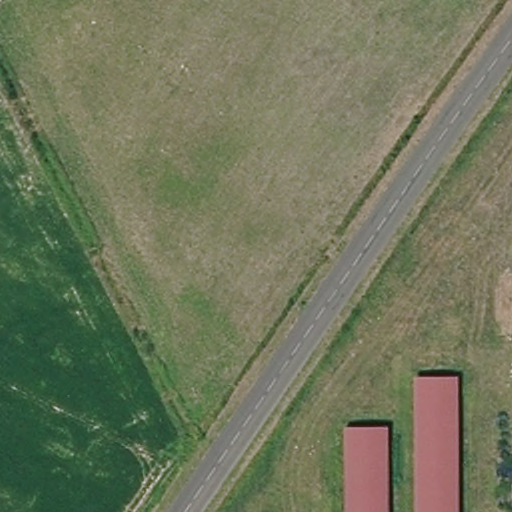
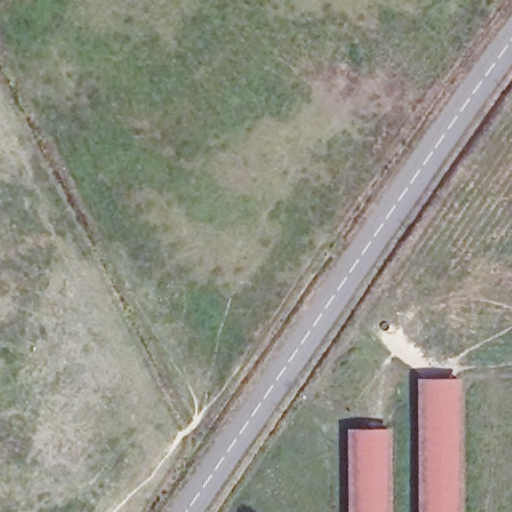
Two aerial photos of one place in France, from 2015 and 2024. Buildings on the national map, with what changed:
unchanged [(413,378),(459,377),(457,512),(413,512),(413,378)]
unchanged [(342,427),(388,427),(387,512),(342,512),(342,427)]

